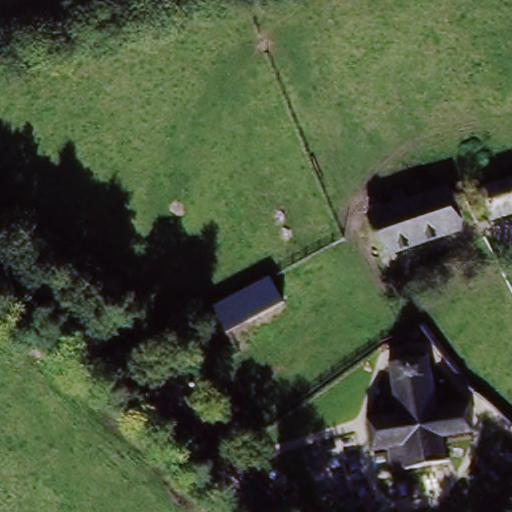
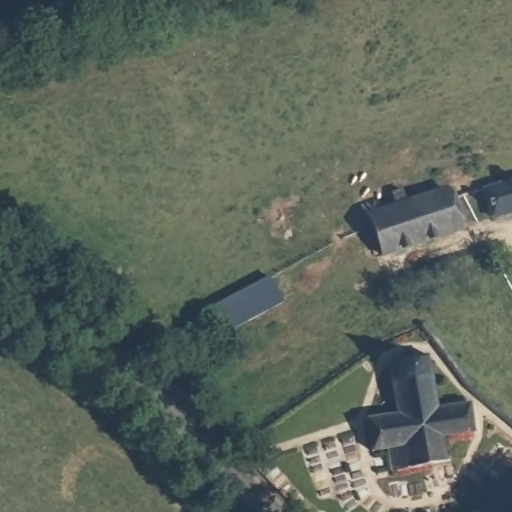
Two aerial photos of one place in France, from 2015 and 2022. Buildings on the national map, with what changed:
unchanged [(492,225),(481,191),(512,182),(512,219),(492,225)]
unchanged [(376,217),(446,185),(449,193),(461,222),(409,247),(393,255),(376,217)]
unchanged [(274,278),(286,303),(228,334),(214,308),(274,278)]
unchanged [(435,404),(468,394),(477,431),(444,441),(450,469),(396,484),(384,452),(368,457),(358,422),(388,413),(378,362),(424,352),(435,404)]

